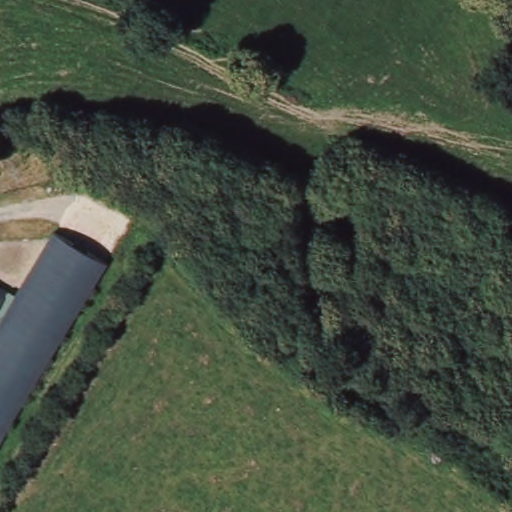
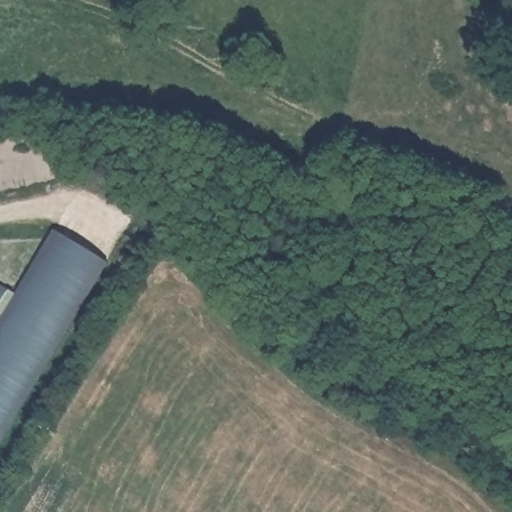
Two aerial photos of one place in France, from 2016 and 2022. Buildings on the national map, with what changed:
unchanged [(60,221),(111,246),(13,436),(5,432),(0,429),(0,334),(22,293),(60,221)]
unchanged [(0,334),(0,283),(22,293),(0,334)]
unchanged [(5,432),(0,440),(0,429),(5,432)]

